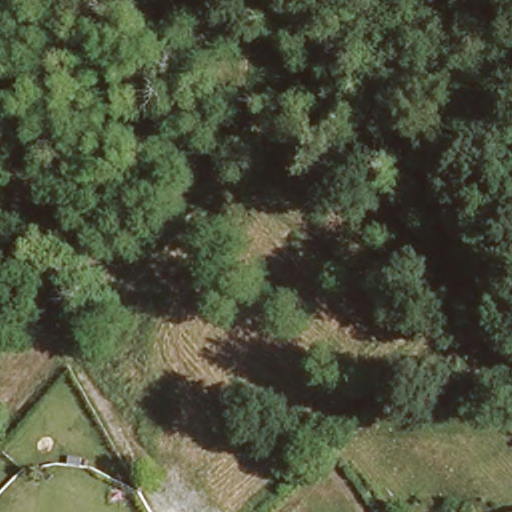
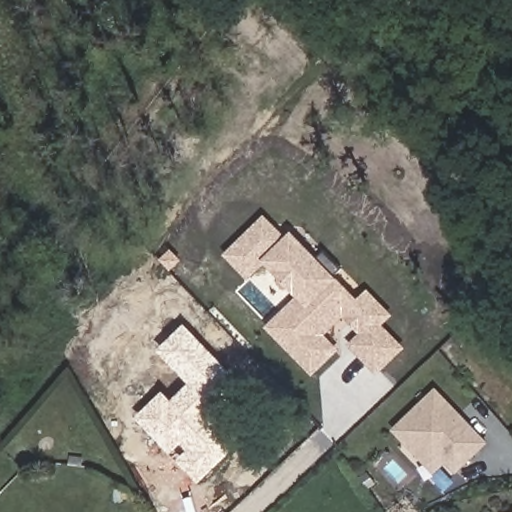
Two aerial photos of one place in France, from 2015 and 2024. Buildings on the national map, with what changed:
new [(298,298),(266,265),(248,281),(225,255),(265,215),(285,236),(291,230),(319,258),(324,253),(341,270),(335,276),(358,298),(367,288),(392,315),(382,324),(405,347),(377,377),(348,347),(360,334),(345,317),(326,336),(340,351),(313,377),(265,327),(298,298)]
new [(239,382),(209,410),(240,442),(198,483),(135,418),(162,392),(170,400),(187,383),(156,352),(185,323),(239,382)]
new [(441,467),(432,475),(390,431),(435,387),(488,443),(451,477),(441,467)]

